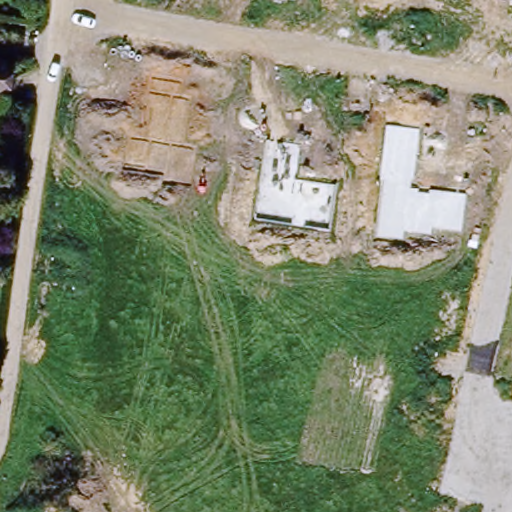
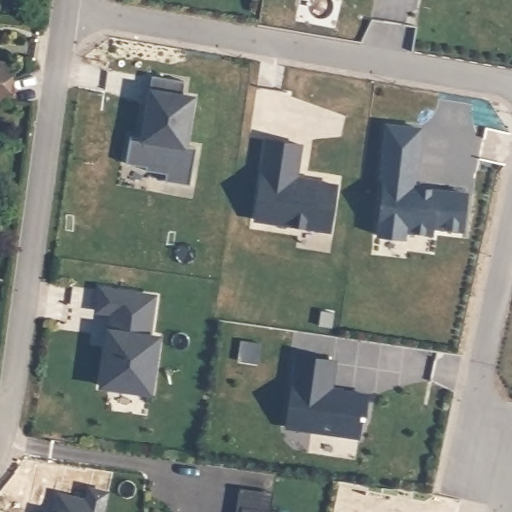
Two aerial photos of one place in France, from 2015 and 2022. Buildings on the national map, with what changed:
unchanged [(0,103),(0,65),(11,66),(7,104),(0,103)]
new [(131,137),(144,139),(149,109),(147,108),(152,77),(185,82),(183,97),(193,99),(185,146),(197,148),(190,186),(165,182),(167,174),(146,171),(147,167),(126,164),(131,137)]
new [(385,181),(382,181),(388,126),(421,130),(414,188),(467,195),(463,231),(433,227),(433,235),(405,232),(404,239),(379,236),(385,181)]
new [(267,141),(302,146),(296,180),(337,187),(330,232),(255,220),(267,141)]
new [(101,290),(132,295),(155,298),(149,337),(158,338),(150,393),(102,386),(112,313),(98,311),(101,290)]
new [(297,356),(334,362),(330,391),(368,396),(365,421),(362,420),(359,437),(287,428),(297,356)]
new [(88,487),(111,492),(106,512),(54,512),(57,492),(86,500),(88,487)]
new [(237,512),(240,487),(273,492),(271,512),(237,512)]

